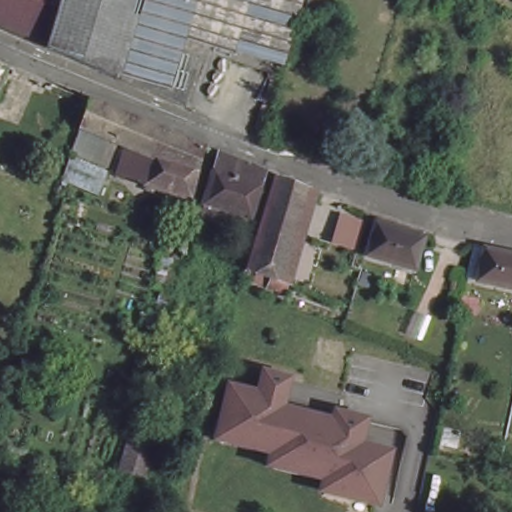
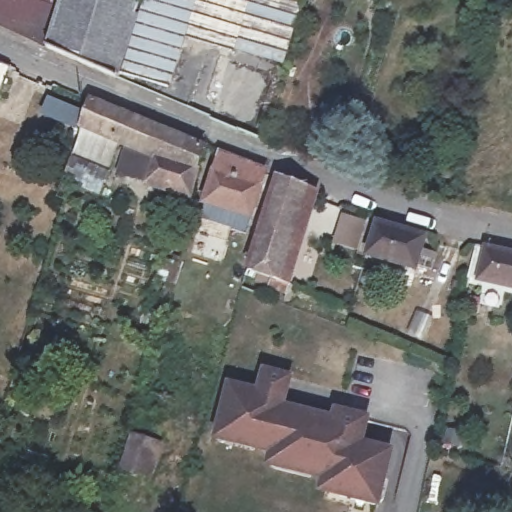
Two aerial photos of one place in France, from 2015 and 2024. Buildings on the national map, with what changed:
unchanged [(0,30),(0,0),(150,0),(123,86),(0,30)]
unchanged [(287,76),(189,43),(174,97),(131,83),(156,0),(309,0),(287,76)]
unchanged [(505,9),(492,5),(493,2),(493,0),(508,0),(505,9)]
unchanged [(83,126),(93,95),(208,142),(191,194),(124,172),(133,145),(121,141),(83,126)]
unchanged [(106,191),(66,180),(82,127),(126,147),(117,174),(106,191)]
unchanged [(263,164),(258,181),(264,184),(249,232),(205,219),(226,149),(263,164)]
unchanged [(283,284),(271,280),(252,274),(281,178),(311,191),(283,284)]
unchanged [(283,284),(311,191),(319,194),(289,298),(267,293),(271,280),(283,284)]
unchanged [(414,271),(366,254),(378,224),(426,240),(414,271)]
unchanged [(476,242),(512,251),(512,289),(469,278),(476,242)]
unchanged [(164,283),(171,261),(173,255),(184,258),(183,264),(176,287),(164,283)]
unchanged [(295,374),(290,402),(336,414),(339,406),(378,415),(374,438),(398,446),(387,501),(323,490),(325,480),(269,465),(271,451),(216,439),(231,379),(259,384),(269,367),(295,374)]
unchanged [(161,445),(151,479),(119,470),(130,436),(161,445)]

